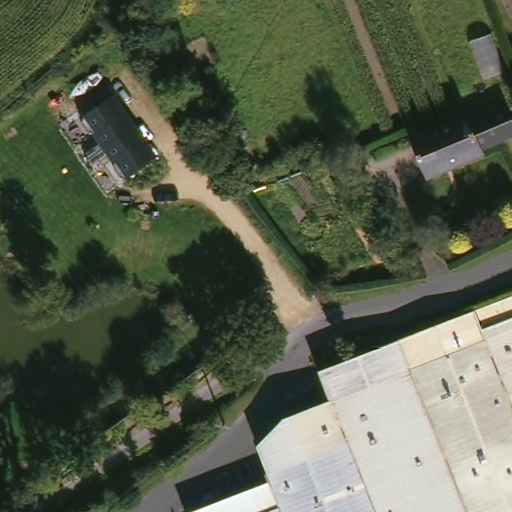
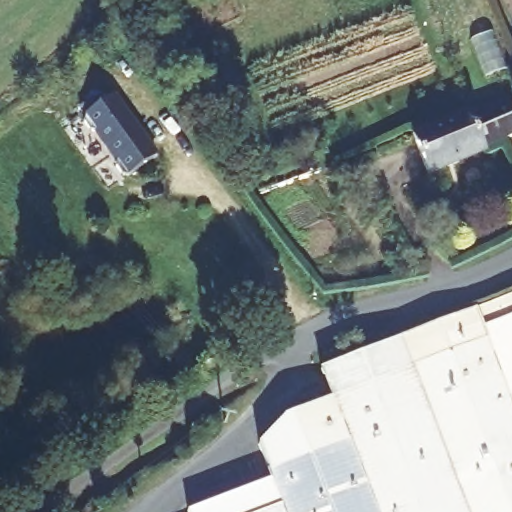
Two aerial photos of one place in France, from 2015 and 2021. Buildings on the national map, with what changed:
unchanged [(136,127),(158,157),(130,178),(124,177),(117,167),(118,161),(98,133),(92,132),(85,122),(86,116),(115,96),(136,127)]
unchanged [(512,100),(512,135),(487,145),(491,154),(435,178),(418,136),(510,97),(512,100)]
unchanged [(268,478),(254,442),(280,416),(328,397),(318,371),(512,301),(512,512),(183,512),(182,511),(268,478)]

